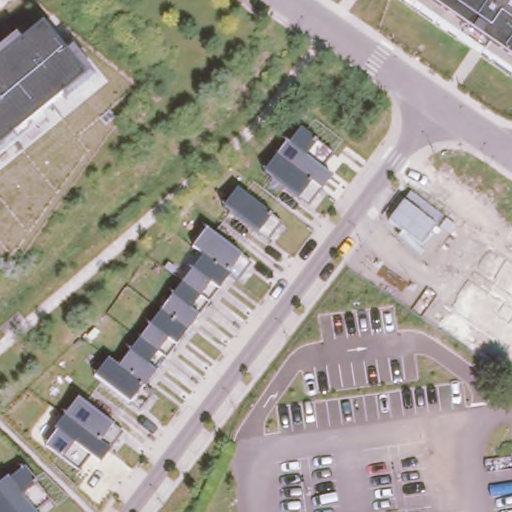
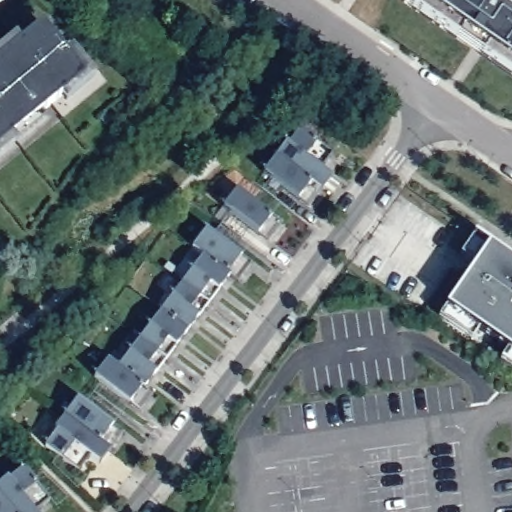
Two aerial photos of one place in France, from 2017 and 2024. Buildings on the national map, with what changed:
unchanged [(403,0),(512,0),(512,75),(403,0)]
unchanged [(82,76),(0,143),(0,56),(41,23),(82,76)]
unchanged [(332,154),(322,171),(330,177),(307,207),(262,173),(287,141),(290,143),(301,127),(332,154)]
unchanged [(283,221),(268,242),(256,234),(254,235),(220,209),(238,187),(283,221)]
unchanged [(251,263),(238,282),(226,274),(147,385),(154,390),(140,410),(92,378),(107,356),(120,365),(203,255),(192,246),(206,229),(251,263)]
new [(512,258),(512,350),(448,307),(492,244),(512,258)]
unchanged [(122,431),(100,464),(89,456),(79,471),(43,446),(77,398),(122,431)]
unchanged [(34,512),(0,512),(0,483),(24,465),(50,499),(34,512)]

